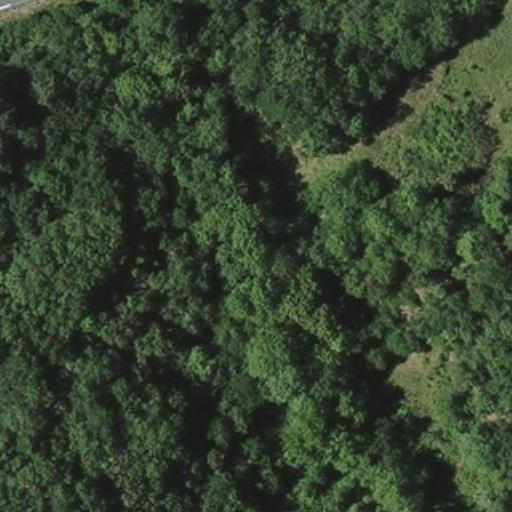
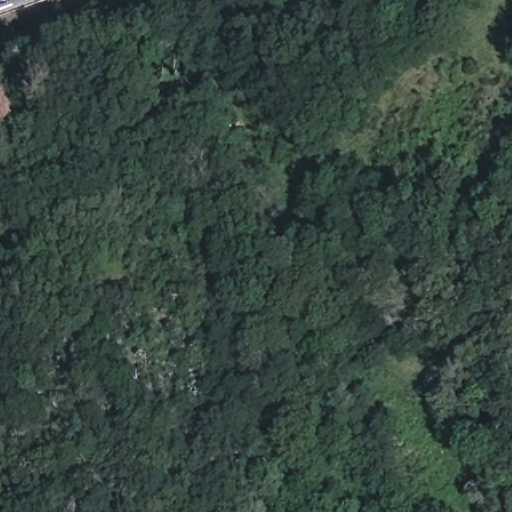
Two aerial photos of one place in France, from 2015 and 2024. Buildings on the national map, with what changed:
unchanged [(342,238),(335,223),(351,216),(357,231),(342,238)]

